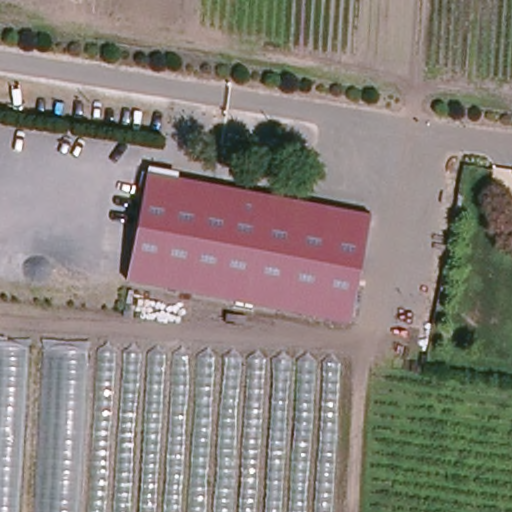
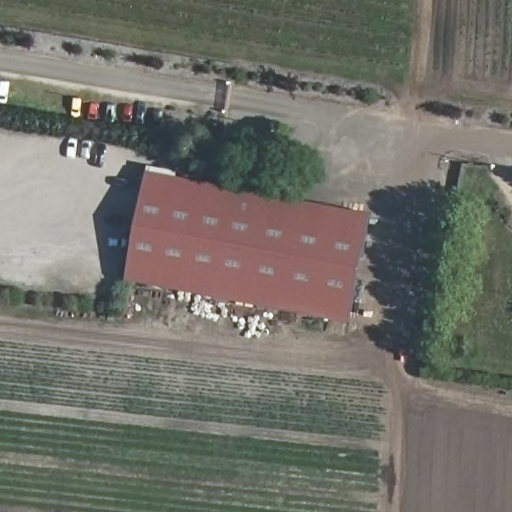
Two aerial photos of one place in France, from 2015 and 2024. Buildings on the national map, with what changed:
unchanged [(126,279),(147,171),(148,165),(179,172),(179,176),(263,191),(246,302),(126,279)]
unchanged [(350,321),(246,302),(263,191),(370,210),(350,321)]
demolished [(328,512),(0,512),(0,345),(335,365),(328,512)]

